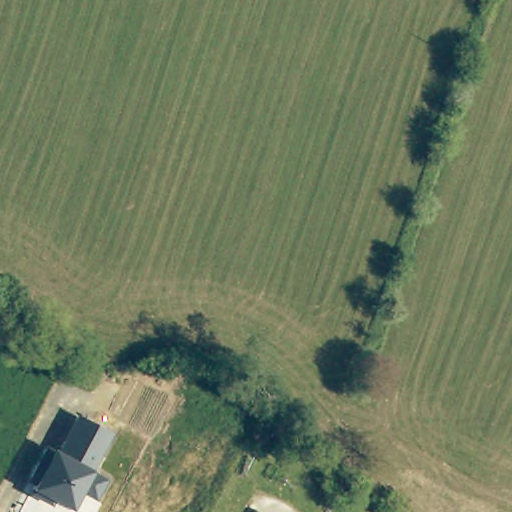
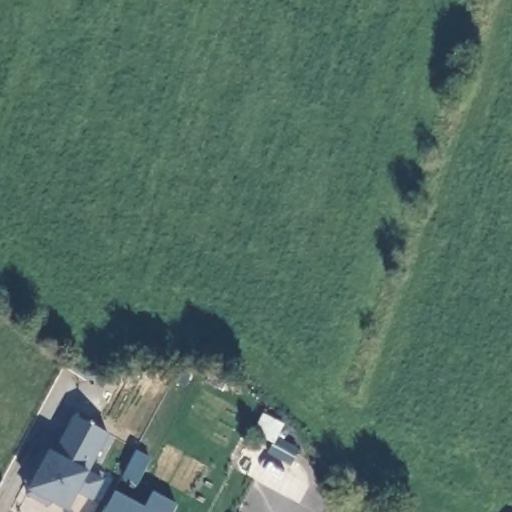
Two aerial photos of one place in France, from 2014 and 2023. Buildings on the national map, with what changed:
unchanged [(94,501),(78,493),(68,512),(50,503),(48,507),(25,495),(30,485),(22,482),(40,445),(54,451),(73,415),(109,433),(90,472),(104,478),(94,501)]
new [(105,512),(116,491),(146,505),(153,491),(176,504),(172,512),(105,512)]

